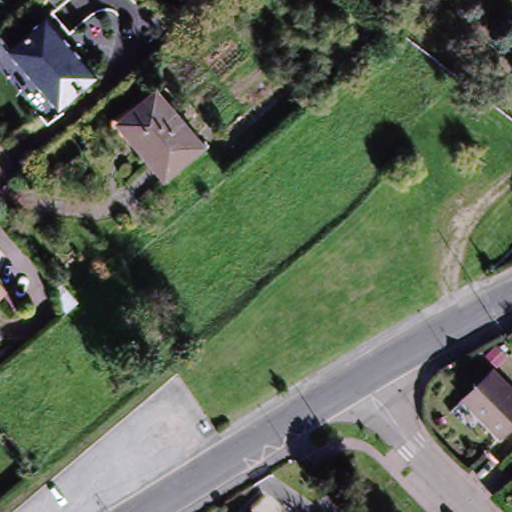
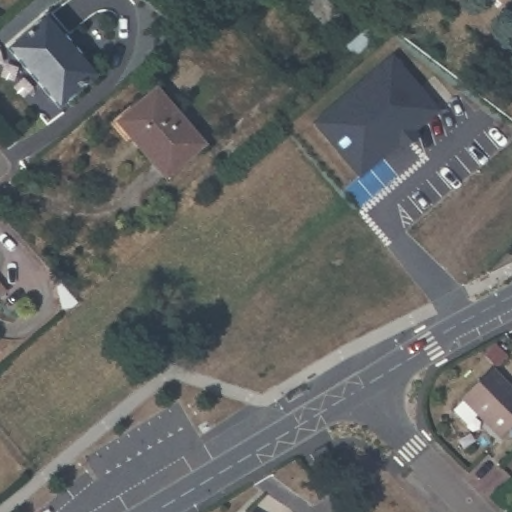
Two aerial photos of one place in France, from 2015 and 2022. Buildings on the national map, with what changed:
unchanged [(342,19),(349,27),(340,34),(333,27),(329,30),(302,0),(329,0),(344,17),(342,19)]
unchanged [(93,72),(55,106),(5,47),(42,15),(93,72)]
unchanged [(389,33),(359,60),(348,48),(378,22),(389,33)]
new [(440,110),(416,131),(421,137),(404,151),(399,146),(359,177),(310,123),(392,52),(440,110)]
unchanged [(199,142),(161,175),(115,120),(153,89),(199,142)]
unchanged [(78,303),(68,312),(63,306),(60,288),(63,286),(78,303)]
unchanged [(4,292),(0,296),(0,288),(4,292)]
unchanged [(456,400),(493,367),(512,389),(512,423),(496,440),(456,400)]

